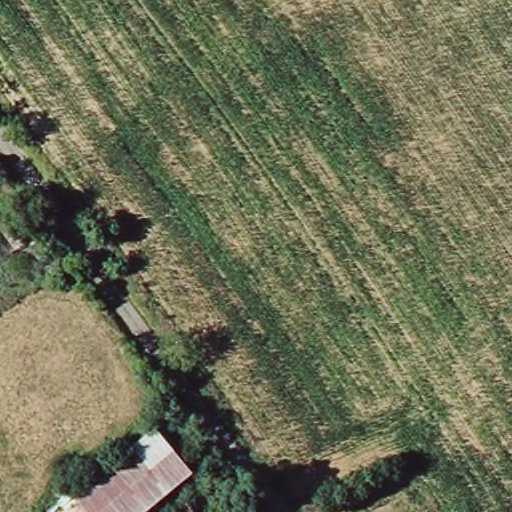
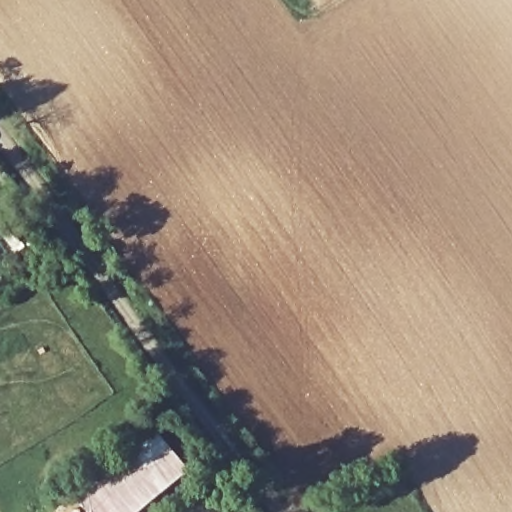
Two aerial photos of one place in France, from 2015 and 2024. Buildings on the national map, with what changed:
unchanged [(134,512),(89,512),(69,488),(152,420),(188,466),(134,512)]

